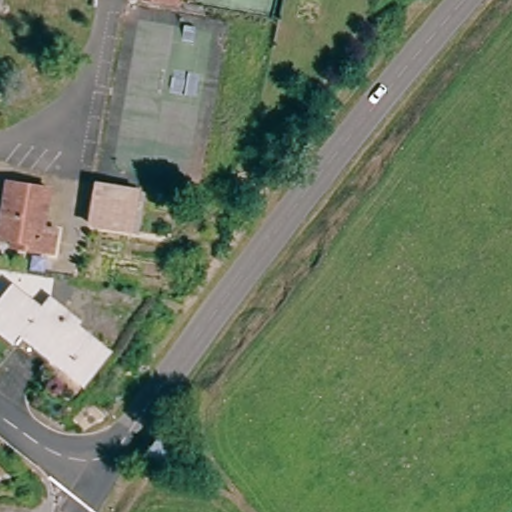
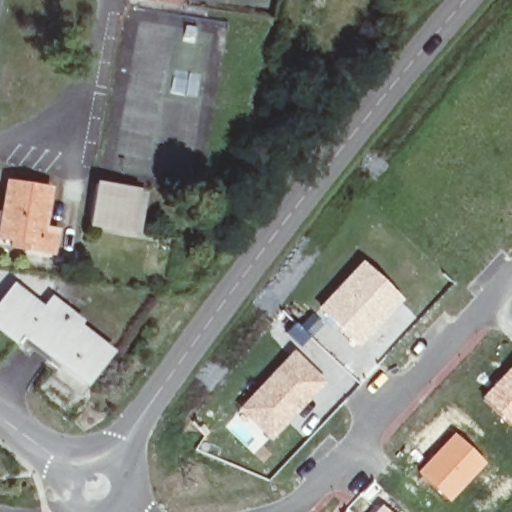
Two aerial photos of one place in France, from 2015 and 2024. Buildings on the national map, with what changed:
unchanged [(158,0),(175,0),(175,3),(158,0)]
unchanged [(0,234),(0,224),(10,180),(49,187),(41,226),(54,230),(49,252),(21,246),(9,244),(10,236),(0,234)]
unchanged [(142,191),(134,232),(94,224),(102,184),(142,191)]
new [(361,259),(404,299),(356,348),(315,308),(361,259)]
unchanged [(56,299),(84,322),(80,325),(112,352),(86,384),(54,357),(57,353),(30,330),(26,335),(19,343),(0,327),(0,309),(20,285),(47,308),(56,299)]
new [(293,348),(326,381),(270,441),(236,408),(293,348)]
new [(512,364),(512,427),(511,428),(480,397),(512,364)]
unchanged [(190,427),(181,441),(183,442),(180,448),(185,452),(179,462),(172,458),(169,464),(146,450),(170,415),(190,427)]
new [(454,431),(486,463),(450,504),(416,472),(454,431)]
new [(381,504),(390,512),(374,512),(381,504)]

